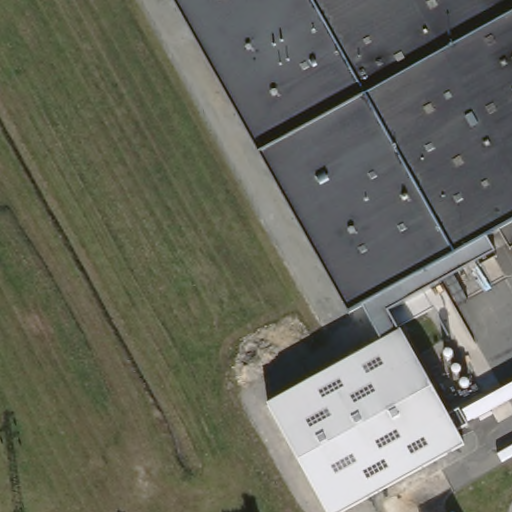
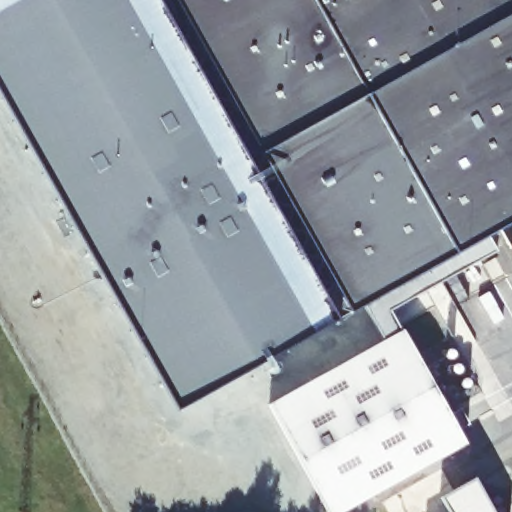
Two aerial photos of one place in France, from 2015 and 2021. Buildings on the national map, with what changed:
new [(155,0),(336,324),(175,412),(0,99),(0,0),(155,0)]
unchanged [(174,0),(512,0),(512,224),(350,310),(174,0)]
unchanged [(512,248),(510,249),(500,230),(512,224),(512,248)]
unchanged [(487,237),(495,251),(498,256),(481,266),(477,261),(390,311),(400,330),(448,415),(460,408),(469,424),(456,431),(465,444),(342,512),(328,512),(268,405),(381,340),(362,304),(487,237)]
new [(441,497),(475,479),(492,512),(448,512),(441,497)]

